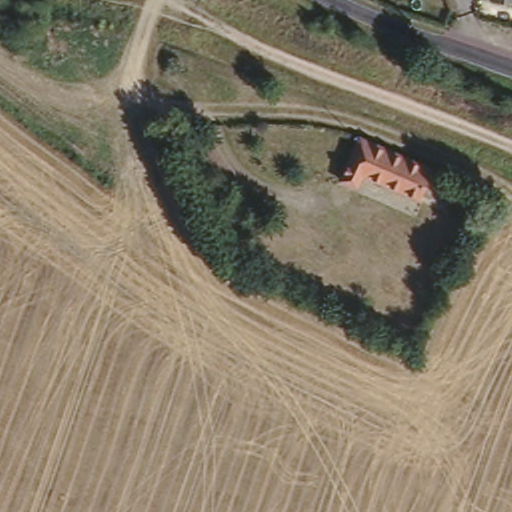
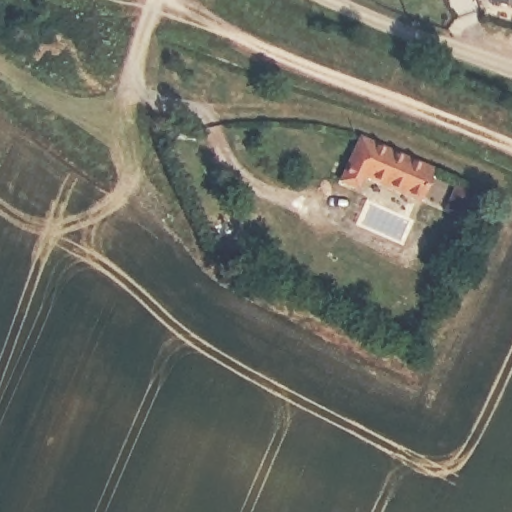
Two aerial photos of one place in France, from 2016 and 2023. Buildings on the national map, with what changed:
unchanged [(512,0),(512,7),(476,2),(476,0),(512,0)]
unchanged [(426,170),(413,194),(364,173),(357,185),(338,177),(353,136),(426,170)]

